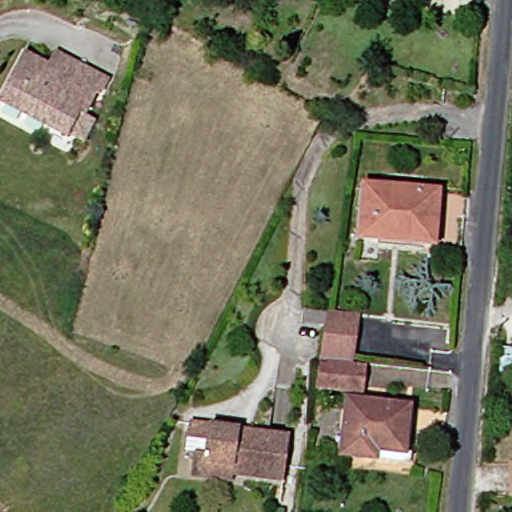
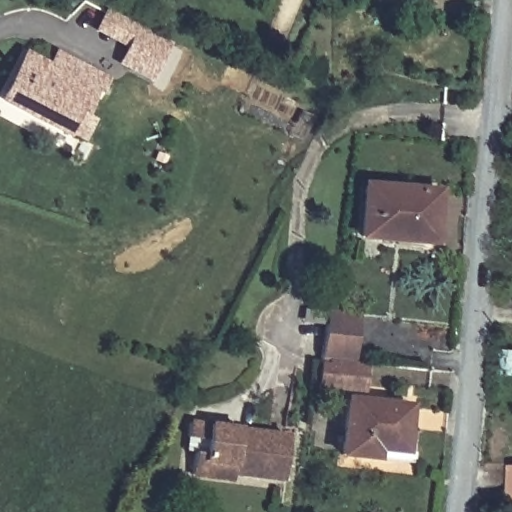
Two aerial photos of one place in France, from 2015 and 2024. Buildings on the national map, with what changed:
new [(106,9),(173,43),(153,82),(119,64),(127,48),(95,31),(106,9)]
unchanged [(64,50),(98,69),(114,77),(106,92),(103,90),(90,114),(84,111),(74,131),(12,98),(10,92),(31,52),(56,64),(64,50)]
unchanged [(442,192),(438,243),(367,237),(371,186),(442,192)]
unchanged [(359,335),(358,335),(354,361),(334,358),(326,358),(330,332),(331,326),(307,323),(309,308),(333,312),(361,315),(359,335)]
demolished [(397,336),(398,322),(456,328),(454,341),(397,336)]
unchanged [(502,369),(504,347),(512,348),(512,370),(502,369)]
unchanged [(325,363),(333,364),(333,362),(369,366),(367,392),(322,387),(325,363)]
unchanged [(414,457),(413,464),(402,463),(402,470),(368,466),(368,461),(344,458),(350,396),(419,403),(414,457)]
unchanged [(295,432),(289,469),(240,461),(238,476),(195,470),(201,433),(193,431),(194,417),(295,432)]
demolished [(509,512),(509,483),(512,483),(512,512),(509,512)]

